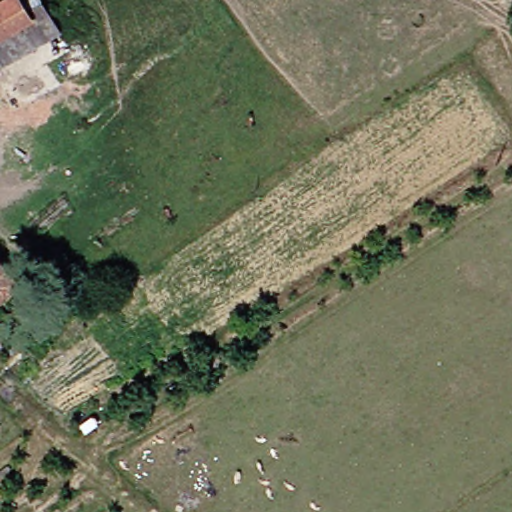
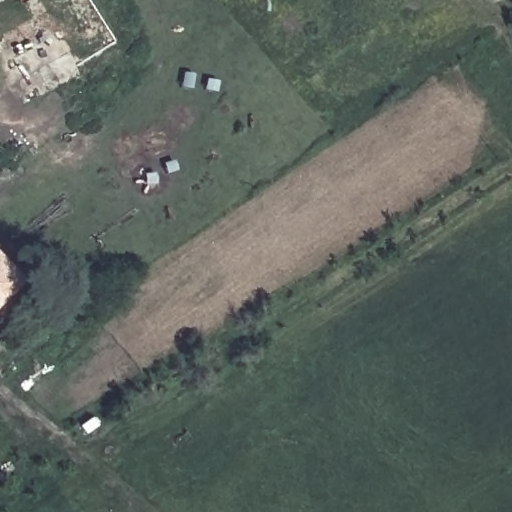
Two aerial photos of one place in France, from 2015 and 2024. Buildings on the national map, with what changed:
demolished [(50,34),(0,67),(0,0),(29,0),(50,34)]
unchanged [(0,303),(0,271),(16,289),(0,303)]

